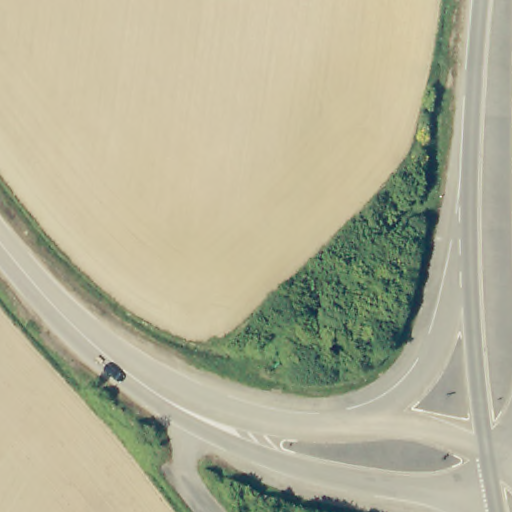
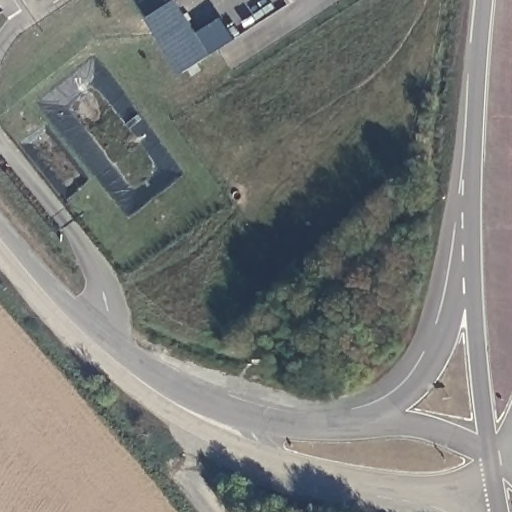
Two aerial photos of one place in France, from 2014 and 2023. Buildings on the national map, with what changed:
new [(176,0),(197,30),(221,14),(236,36),(212,53),(181,71),(145,15),(169,0),(176,0)]

